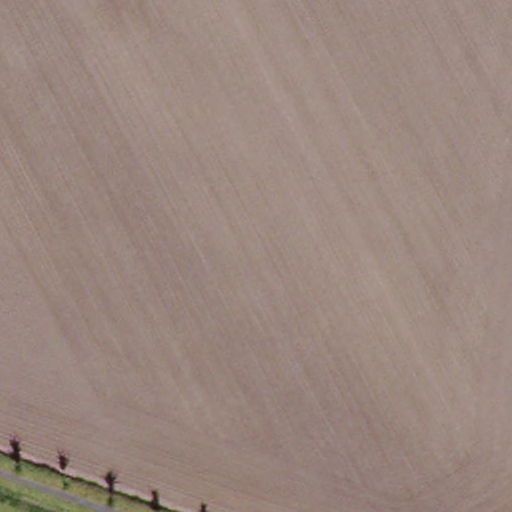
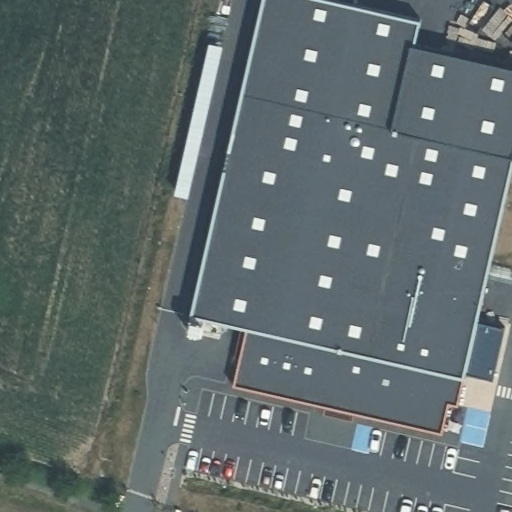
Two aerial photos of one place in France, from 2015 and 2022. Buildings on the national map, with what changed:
new [(414,44),(512,66),(512,162),(457,405),(448,403),(442,432),(232,385),(246,327),(190,315),(263,0),(336,0),(418,19),(414,44)]

